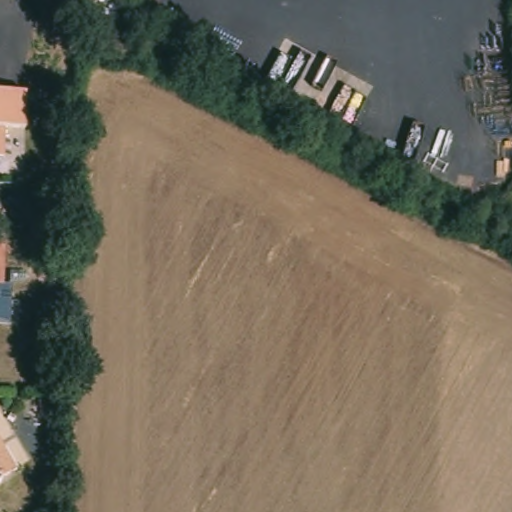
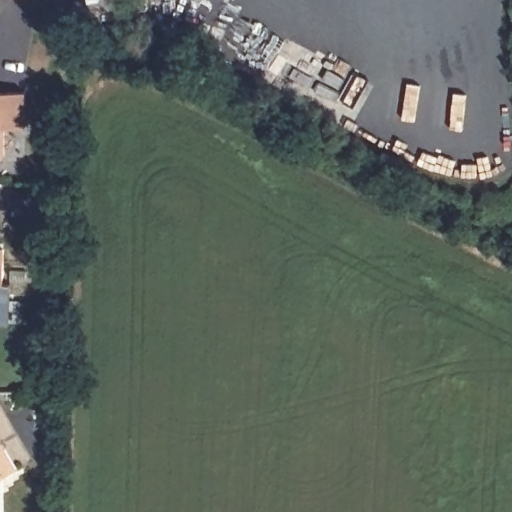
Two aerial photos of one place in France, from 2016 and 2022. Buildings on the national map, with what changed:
unchanged [(24,135),(4,134),(1,162),(0,161),(0,98),(27,100),(24,135)]
unchanged [(4,285),(0,285),(0,243),(4,243),(4,285)]
unchanged [(0,478),(0,439),(14,472),(0,478)]
unchanged [(0,483),(0,479),(2,482),(0,483)]

